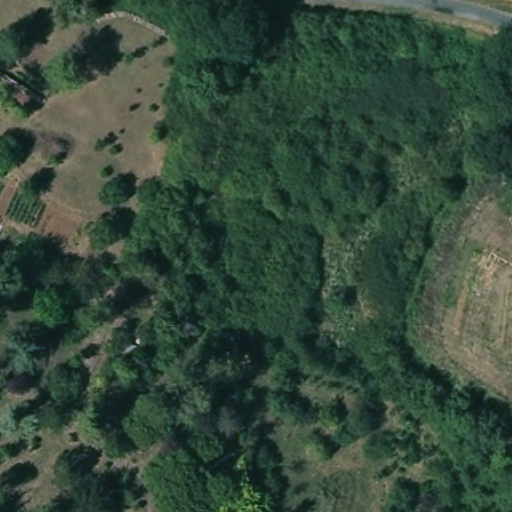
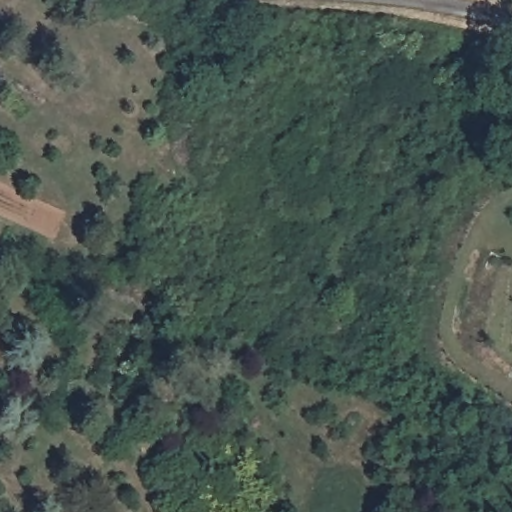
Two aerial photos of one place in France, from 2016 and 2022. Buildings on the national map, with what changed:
[]

